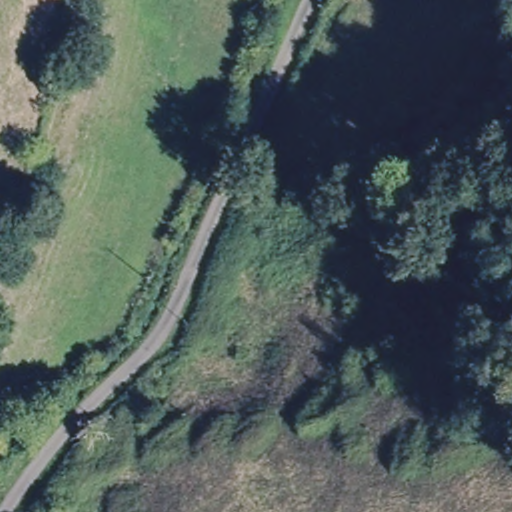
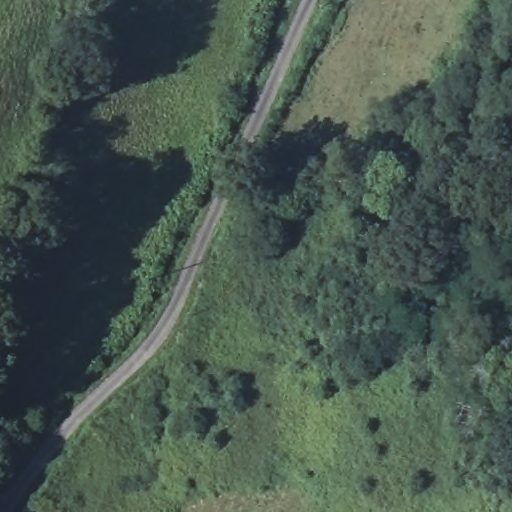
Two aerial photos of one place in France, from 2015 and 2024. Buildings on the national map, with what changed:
unchanged [(40,512),(14,512),(13,511),(30,475),(52,488),(40,512)]

